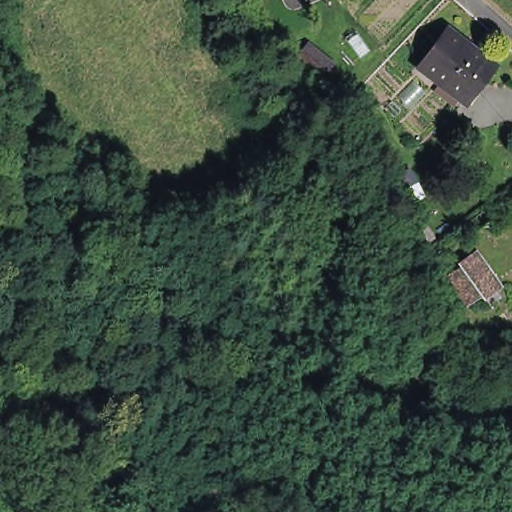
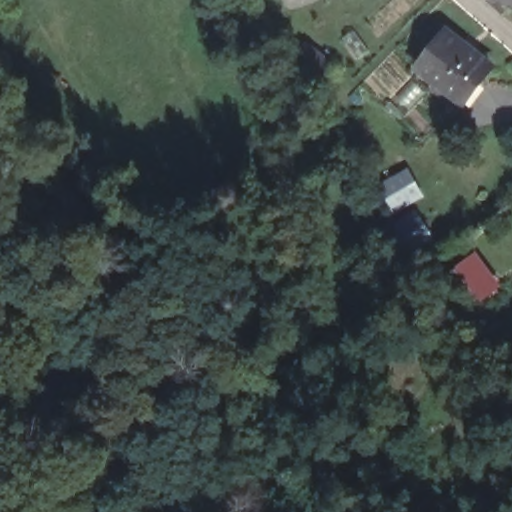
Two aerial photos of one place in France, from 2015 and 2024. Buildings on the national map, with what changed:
unchanged [(450,24),(496,58),(467,94),(423,59),(450,24)]
unchanged [(416,208),(432,235),(412,247),(396,221),(416,208)]
unchanged [(487,302),(480,294),(457,262),(472,251),(495,283),(501,292),(487,302)]

